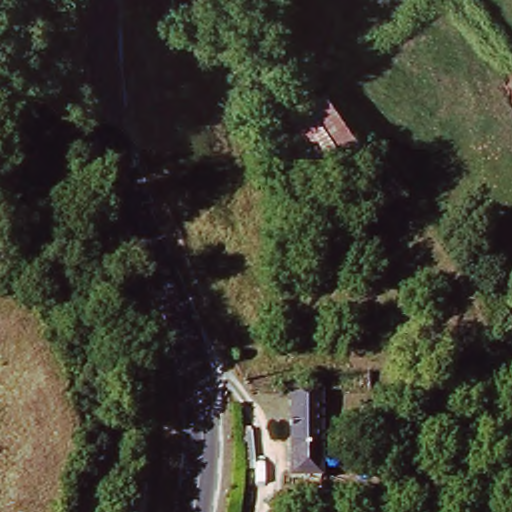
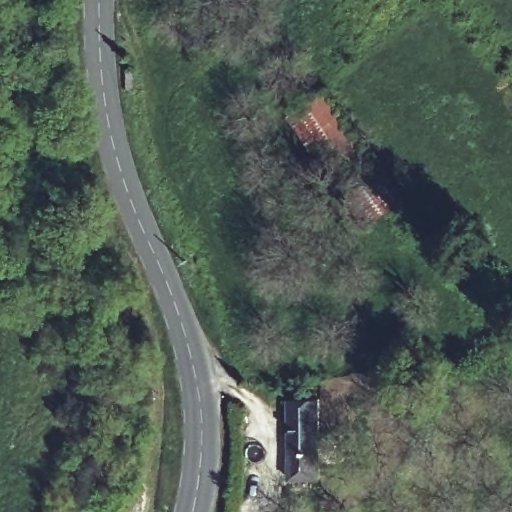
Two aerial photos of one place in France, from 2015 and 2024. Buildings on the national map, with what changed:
unchanged [(371,219),(291,119),(322,96),(400,195),(371,219)]
unchanged [(289,400),(319,399),(321,474),(290,475),(289,400)]

